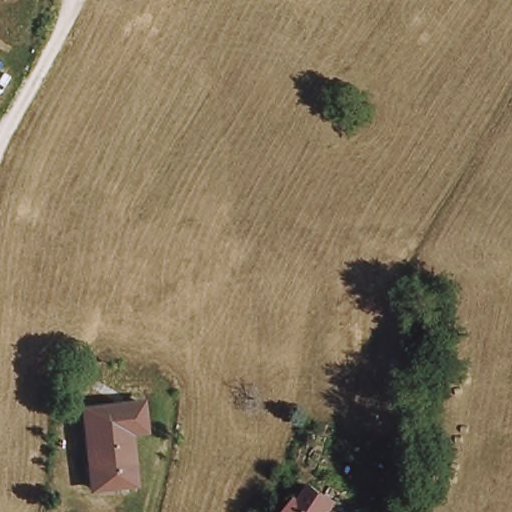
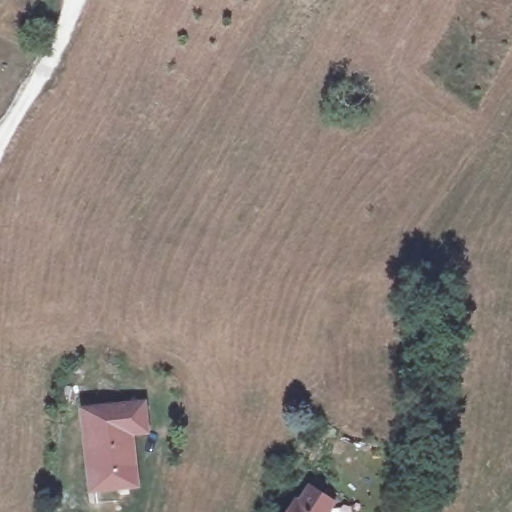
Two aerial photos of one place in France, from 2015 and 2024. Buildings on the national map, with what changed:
unchanged [(85,483),(79,403),(137,398),(139,426),(125,428),(130,480),(85,483)]
unchanged [(320,488),(339,509),(336,512),(288,512),(302,499),(305,501),(320,488)]

